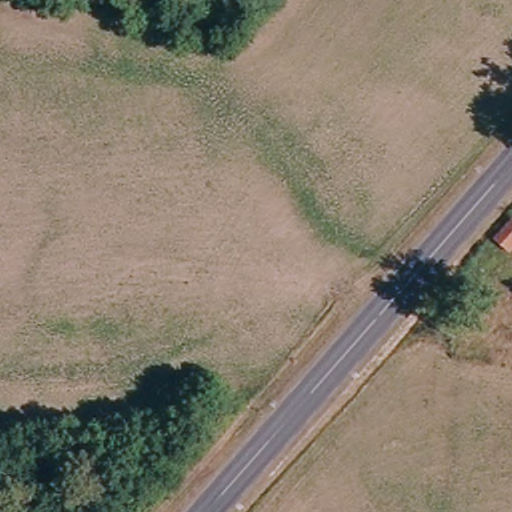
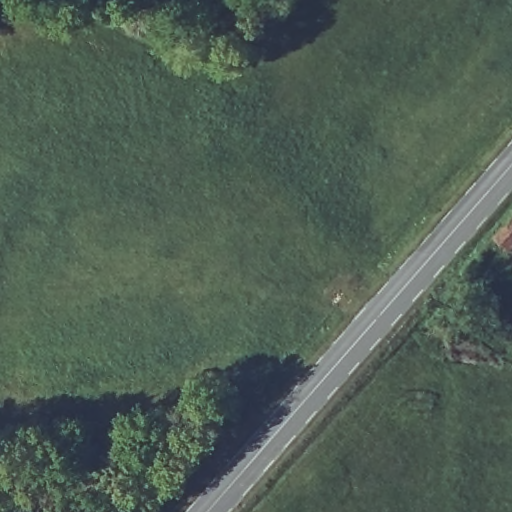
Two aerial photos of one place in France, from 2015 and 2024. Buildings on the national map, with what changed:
unchanged [(512,215),(512,248),(504,256),(491,241),(512,215)]

